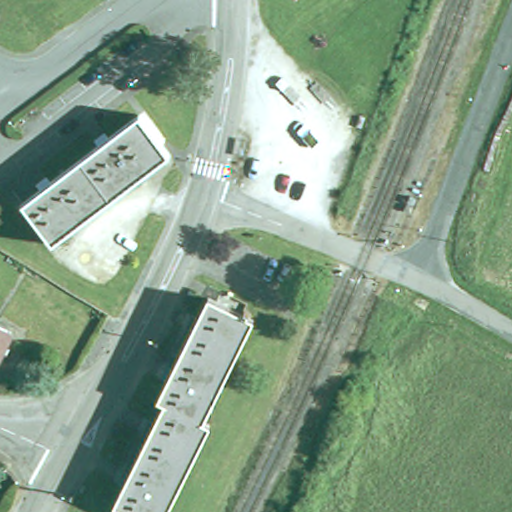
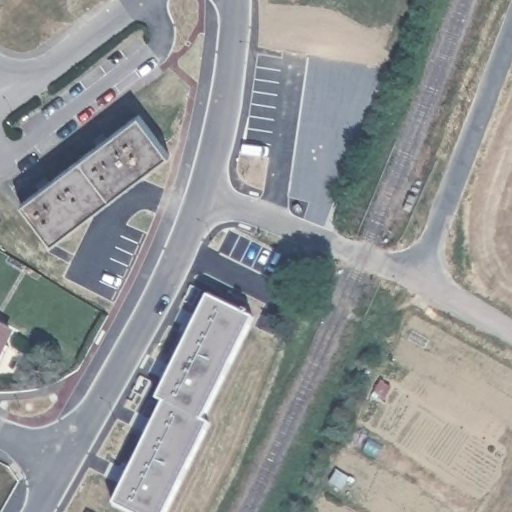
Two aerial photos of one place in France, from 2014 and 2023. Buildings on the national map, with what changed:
unchanged [(139,117),(169,157),(53,247),(23,206),(139,117)]
unchanged [(204,424),(211,427),(168,512),(128,512),(118,507),(127,489),(120,486),(126,474),(133,477),(151,437),(146,435),(151,423),(156,427),(166,406),(161,403),(170,385),(164,382),(170,368),(176,372),(195,332),(189,329),(194,318),(201,322),(210,302),(253,322),(204,424)]
unchanged [(0,370),(0,329),(16,338),(0,370)]
unchanged [(90,512),(87,512),(88,511),(90,512)]

